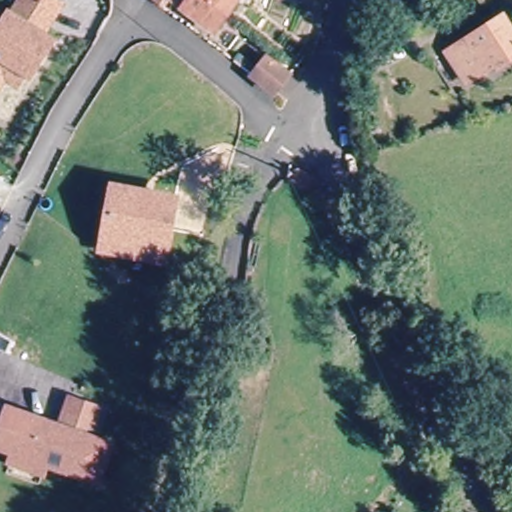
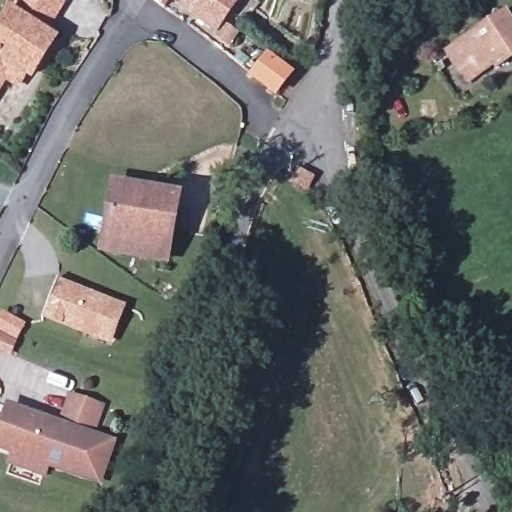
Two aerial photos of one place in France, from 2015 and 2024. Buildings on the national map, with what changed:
unchanged [(27,79),(9,67),(0,82),(0,27),(8,15),(13,18),(13,17),(24,0),(52,0),(62,7),(42,37),(51,42),(27,79)]
unchanged [(154,5),(148,0),(158,0),(154,5)]
unchanged [(226,14),(223,18),(211,34),(168,0),(236,0),(226,14)]
unchanged [(506,14),(512,23),(512,59),(496,70),(494,66),(466,84),(456,66),(447,51),(461,43),(506,14)]
unchanged [(269,58),(289,75),(276,93),(255,75),(269,58)]
unchanged [(108,230),(116,186),(176,197),(165,256),(142,251),(105,245),(108,230)]
new [(41,319),(56,279),(128,308),(113,348),(41,319)]
unchanged [(71,401),(100,411),(90,439),(112,447),(98,485),(2,450),(0,449),(0,433),(8,410),(15,412),(61,429),(71,401)]

